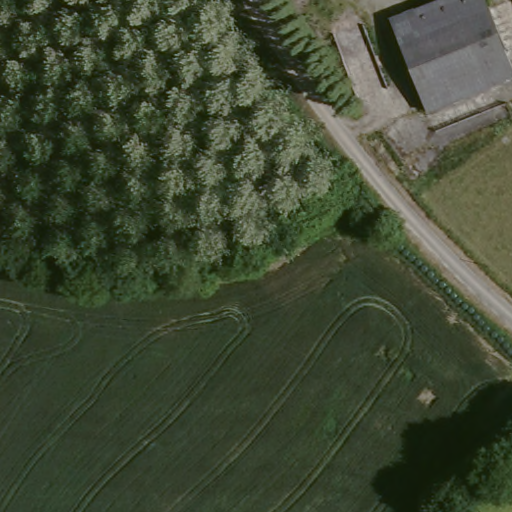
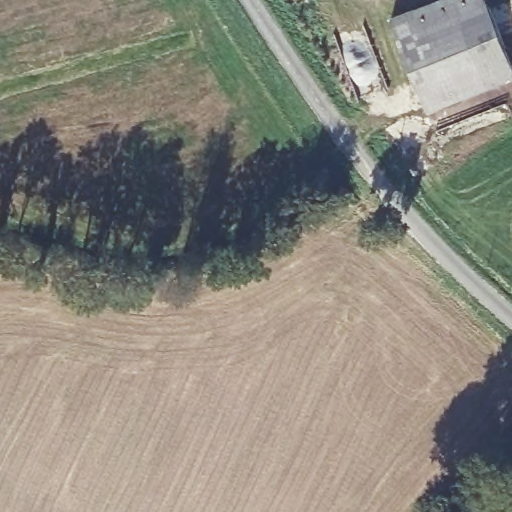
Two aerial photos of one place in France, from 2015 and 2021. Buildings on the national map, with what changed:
unchanged [(393,16),(435,0),(487,0),(512,62),(512,82),(430,112),(393,16)]

